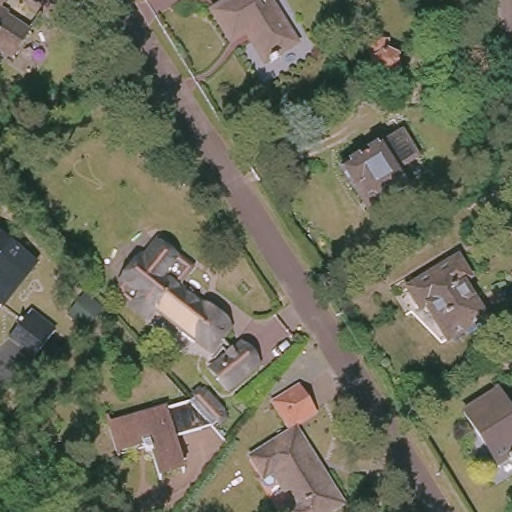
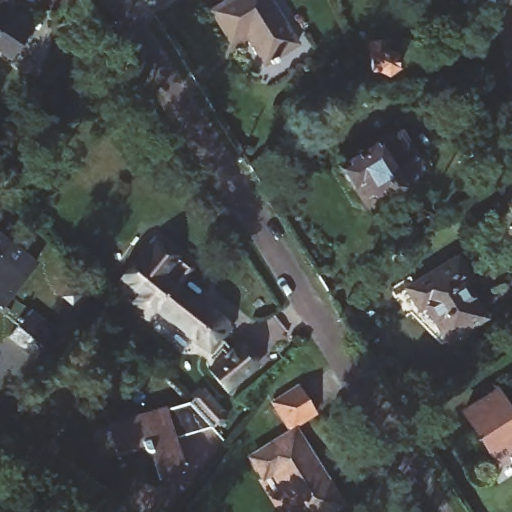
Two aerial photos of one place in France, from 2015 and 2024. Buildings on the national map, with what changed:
unchanged [(267,0),(292,41),(260,61),(245,37),(250,34),(246,28),(242,30),(227,40),(207,9),(222,0),(267,0)]
unchanged [(27,32),(10,58),(0,51),(0,15),(27,32)]
unchanged [(383,42),(385,51),(400,54),(401,69),(392,76),(383,69),(371,70),(367,44),(383,42)]
unchanged [(378,155),(398,143),(415,169),(395,182),(403,194),(362,219),(336,179),(377,154),(378,155)]
unchanged [(207,347),(150,300),(143,309),(117,288),(118,283),(120,279),(123,274),(121,273),(140,250),(142,252),(157,234),(190,262),(175,279),(227,322),(207,347)]
unchanged [(469,276),(460,282),(485,318),(447,343),(422,306),(417,310),(402,291),(455,255),(469,276)]
unchanged [(0,306),(0,261),(22,279),(6,299),(0,306)]
unchanged [(28,312),(53,332),(33,357),(11,338),(28,312)]
unchanged [(255,367),(222,388),(207,366),(241,343),(255,367)]
unchanged [(512,453),(508,449),(495,457),(497,462),(493,464),(460,410),(498,384),(512,405),(512,453)]
unchanged [(333,512),(292,512),(297,509),(274,473),(265,478),(252,457),(290,432),(274,409),(300,391),(317,414),(294,429),(343,506),(333,512)]
unchanged [(214,422),(173,433),(185,469),(180,470),(177,464),(161,469),(164,476),(158,476),(157,471),(152,468),(147,467),(138,439),(117,446),(122,458),(117,458),(102,414),(108,413),(110,419),(192,396),(214,422)]

